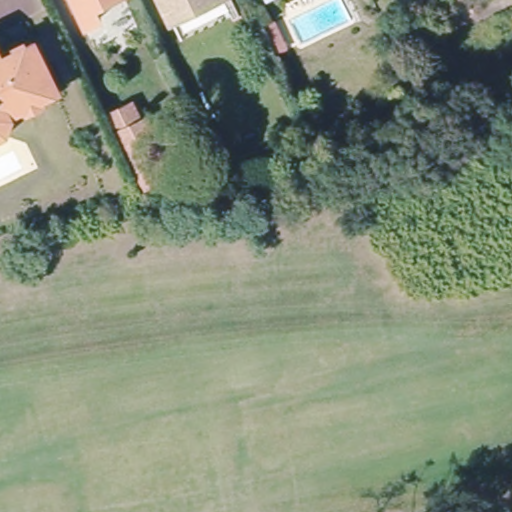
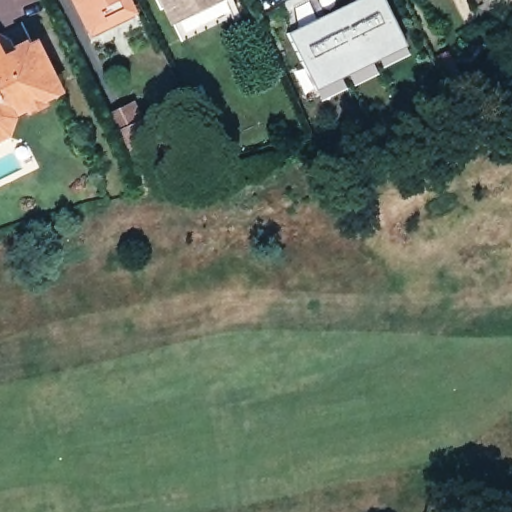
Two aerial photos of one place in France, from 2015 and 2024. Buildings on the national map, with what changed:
unchanged [(93,9),(98,20),(84,27),(71,0),(112,0),(93,9)]
unchanged [(172,22),(162,0),(218,0),(172,22)]
new [(404,48),(314,91),(287,32),(351,0),(382,0),(404,48)]
unchanged [(0,53),(37,35),(58,82),(52,85),(3,109),(0,114),(0,52),(0,53)]
unchanged [(1,41),(3,47),(0,50),(0,40),(1,41)]
unchanged [(438,55),(450,48),(461,70),(449,77),(438,55)]
unchanged [(56,93),(13,114),(6,131),(0,135),(0,114),(3,109),(52,85),(56,93)]
unchanged [(177,176),(146,186),(120,129),(111,110),(136,98),(145,118),(149,116),(177,176)]
unchanged [(221,143),(233,169),(220,173),(209,149),(221,143)]

